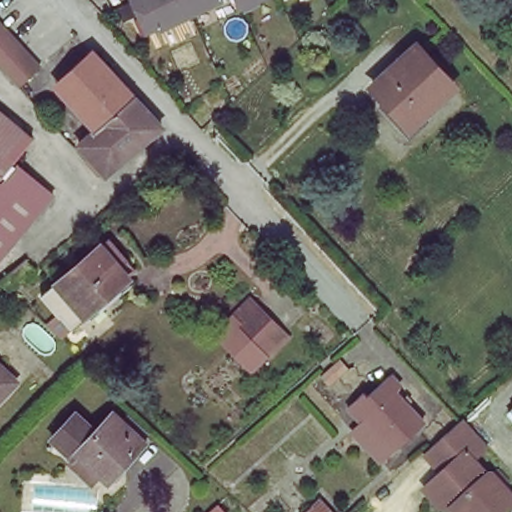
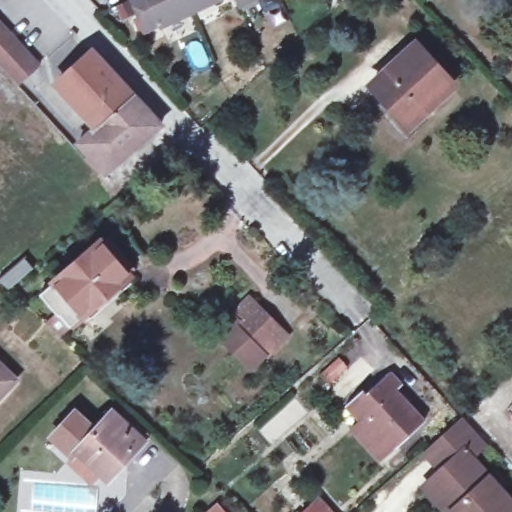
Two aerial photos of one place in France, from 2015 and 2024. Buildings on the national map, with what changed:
unchanged [(144,31),(129,0),(213,0),(144,31)]
unchanged [(238,7),(234,0),(250,0),(238,7)]
unchanged [(36,69),(18,85),(0,65),(0,28),(36,69)]
unchanged [(419,46),(455,86),(412,126),(374,85),(419,46)]
unchanged [(159,125),(106,174),(79,145),(96,130),(57,85),(93,54),(128,92),(159,125)]
demolished [(32,136),(15,158),(54,190),(0,254),(0,108),(32,136)]
unchanged [(126,277),(82,312),(55,278),(99,244),(104,249),(124,275),(126,277)]
unchanged [(27,261),(33,268),(10,287),(3,280),(27,261)]
unchanged [(264,352),(236,325),(241,320),(235,313),(251,297),(258,305),(284,332),(264,352)]
unchanged [(329,385),(319,375),(337,357),(347,368),(329,385)]
unchanged [(15,380),(0,395),(0,366),(15,380)]
unchanged [(349,433),(359,425),(343,405),(390,372),(402,384),(397,389),(424,418),(375,466),(349,433)]
unchanged [(512,396),(512,413),(504,403),(512,396)]
unchanged [(75,412),(94,430),(113,410),(143,438),(107,477),(78,450),(73,455),(52,436),(75,412)]
unchanged [(464,415),(487,441),(472,453),(463,445),(440,467),(424,449),(464,415)]
unchanged [(472,453),(472,454),(491,475),(497,469),(508,480),(502,486),(512,498),(512,506),(506,512),(453,512),(425,480),(440,467),(463,445),(472,453)]
unchanged [(223,512),(201,512),(214,501),(225,510),(223,512)]
unchanged [(319,512),(306,512),(313,505),(319,512)]

